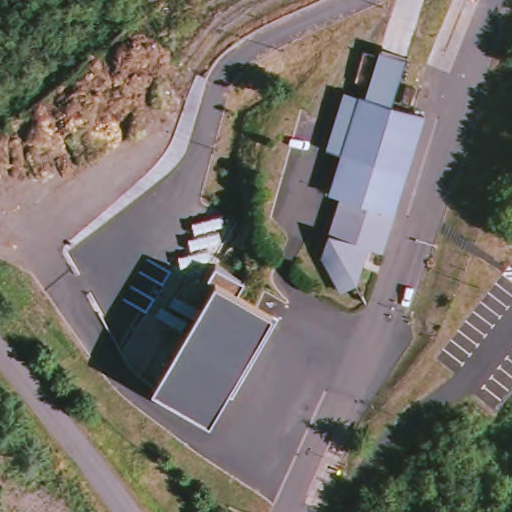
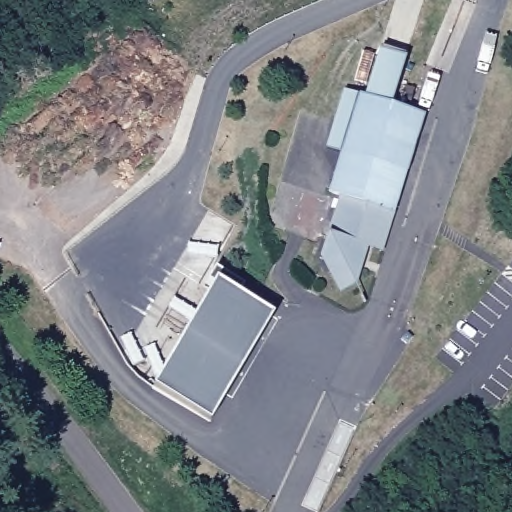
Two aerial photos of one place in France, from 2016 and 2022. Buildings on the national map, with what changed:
unchanged [(335,198),(325,195),(338,155),(325,152),(343,93),(364,99),(380,54),(407,61),(392,108),(421,118),(383,234),(330,216),(335,198)]
unchanged [(330,216),(383,234),(377,253),(361,247),(323,235),(330,216)]
unchanged [(361,247),(348,285),(334,292),(316,257),(323,235),(361,247)]
unchanged [(208,280),(217,268),(243,284),(237,293),(275,314),(210,423),(152,388),(215,284),(208,280)]

